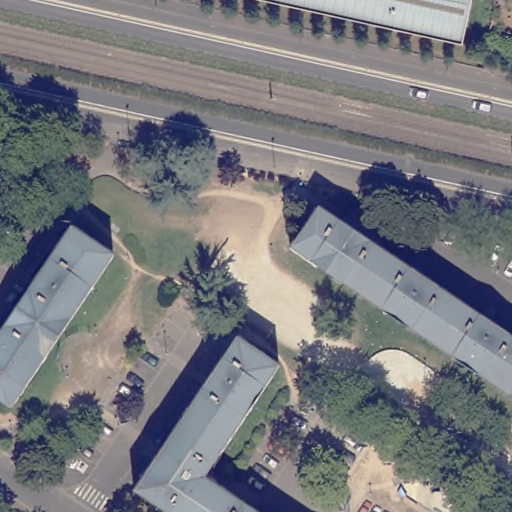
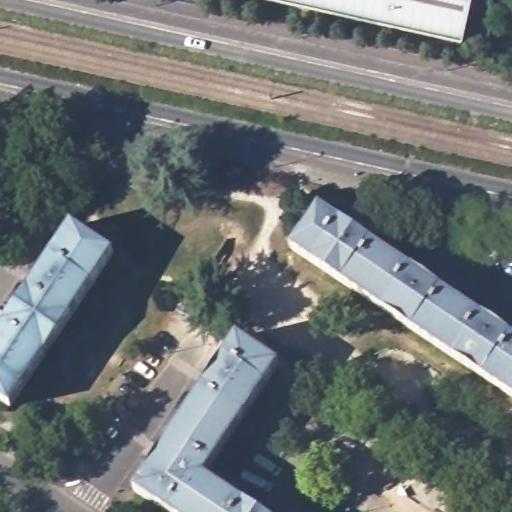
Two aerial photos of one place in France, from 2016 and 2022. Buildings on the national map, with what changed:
unchanged [(261,0),(472,0),(463,41),(261,0)]
unchanged [(290,247),(318,207),(340,221),(512,338),(512,398),(337,280),(290,247)]
unchanged [(0,399),(0,334),(74,227),(114,255),(11,407),(0,399)]
unchanged [(284,366),(209,478),(231,493),(260,512),(172,512),(140,491),(243,338),(284,366)]

